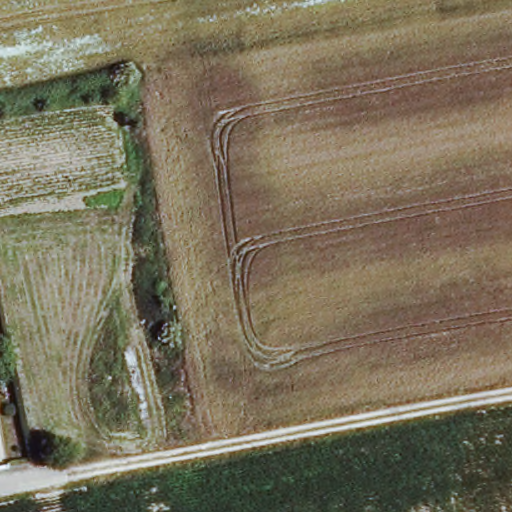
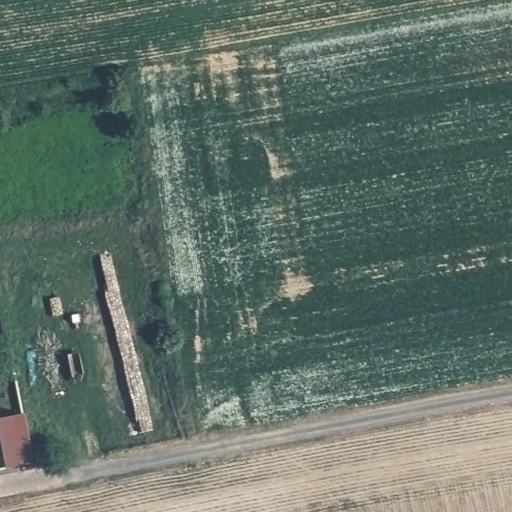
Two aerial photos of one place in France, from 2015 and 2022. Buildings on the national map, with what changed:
new [(24,416),(33,466),(8,470),(0,424),(0,421),(24,416)]

